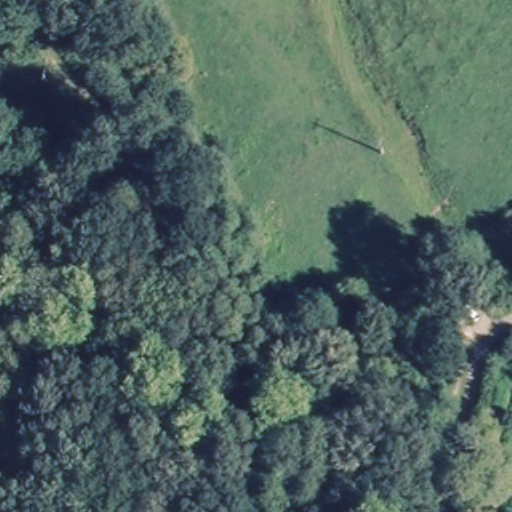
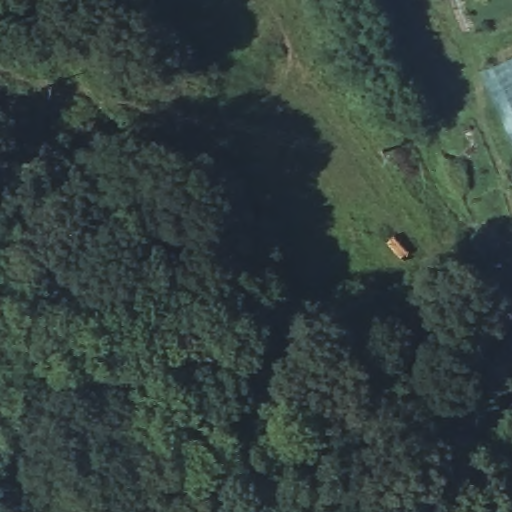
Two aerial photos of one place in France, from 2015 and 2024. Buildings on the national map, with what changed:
new [(512,55),(512,149),(477,71),(512,55)]

